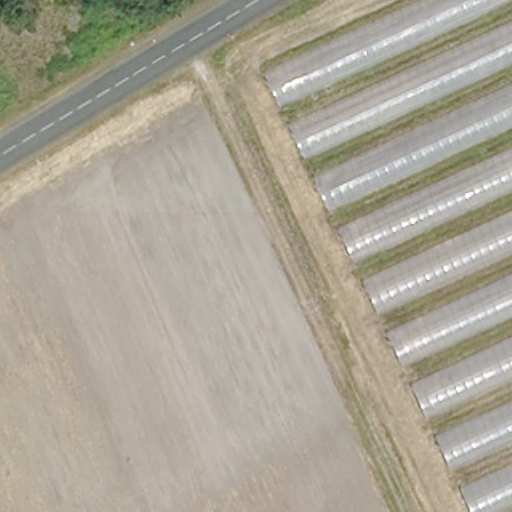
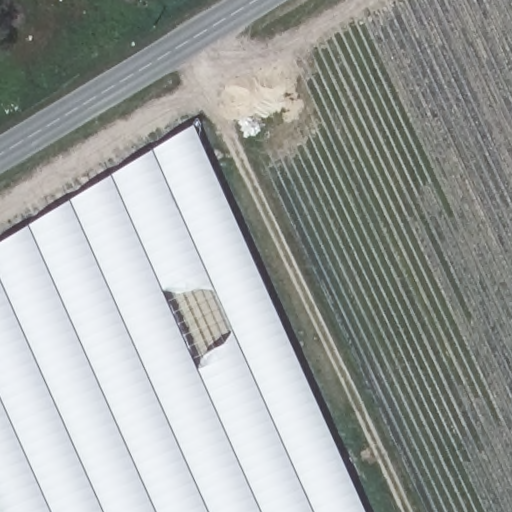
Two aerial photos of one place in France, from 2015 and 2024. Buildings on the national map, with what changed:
demolished [(512,512),(470,512),(266,73),(426,0),(512,0),(512,512)]
new [(194,126),(367,512),(0,512),(0,244),(194,126)]

